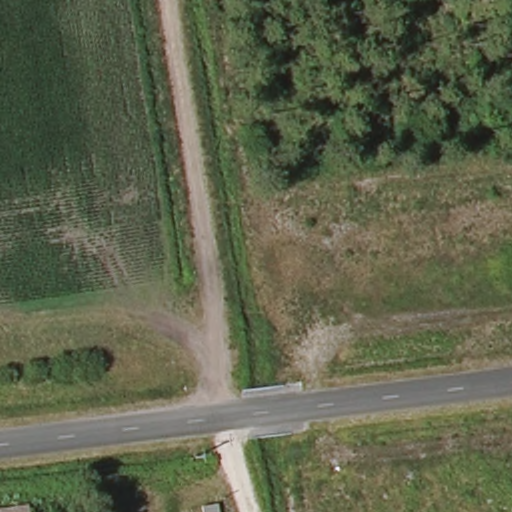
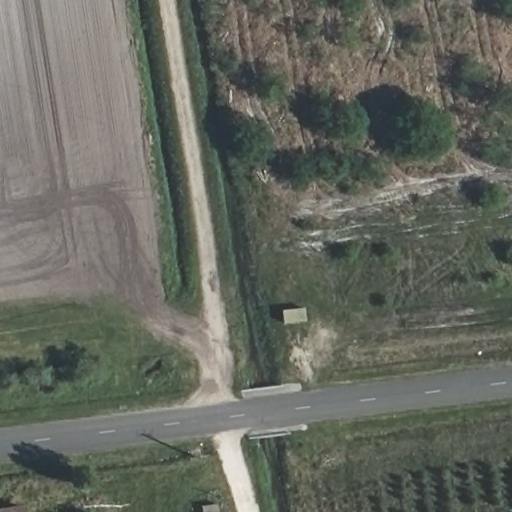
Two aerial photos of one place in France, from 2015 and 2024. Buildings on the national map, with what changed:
unchanged [(0,507),(26,502),(28,512),(0,512),(0,507)]

